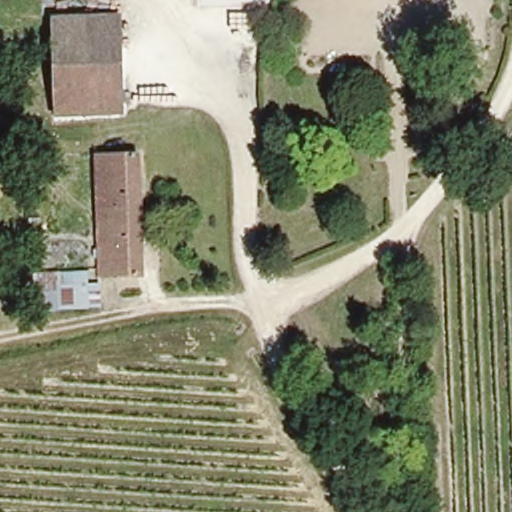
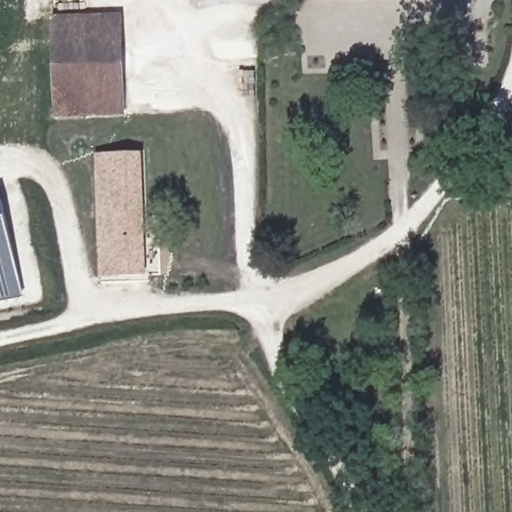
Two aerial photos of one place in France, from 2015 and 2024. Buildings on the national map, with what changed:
unchanged [(53,17),(121,16),(124,115),(56,117),(53,17)]
unchanged [(101,277),(99,157),(141,157),(143,276),(101,277)]
new [(20,294),(0,299),(0,218),(20,294)]

